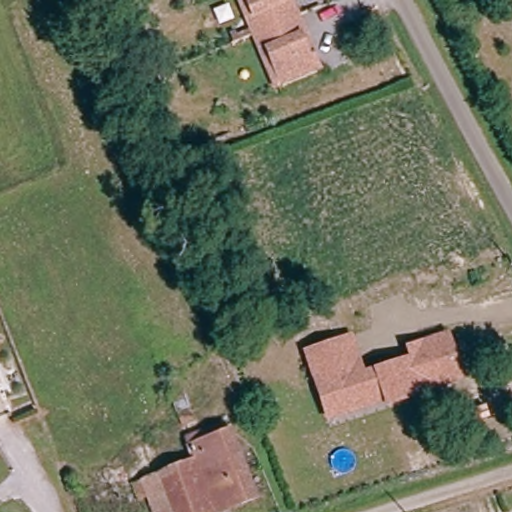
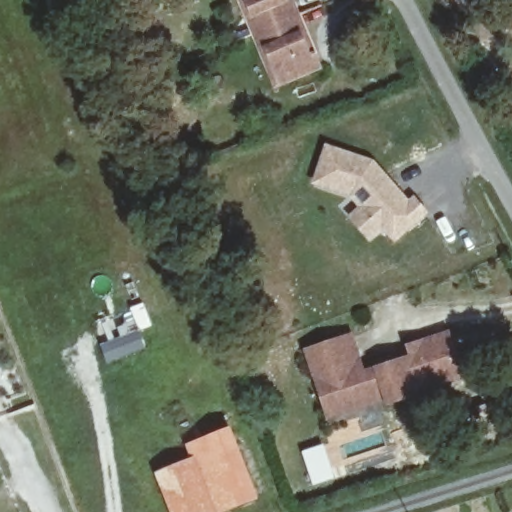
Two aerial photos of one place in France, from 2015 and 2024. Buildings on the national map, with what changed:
unchanged [(127,0),(133,0),(128,2),(127,0)]
unchanged [(266,50),(261,53),(248,19),(251,15),(245,0),(285,0),(285,1),(287,0),(291,0),(306,35),(301,36),(311,75),(280,87),(266,50)]
unchanged [(177,84),(163,89),(153,64),(166,58),(177,84)]
new [(355,191),(319,179),(333,144),(378,161),(388,175),(392,180),(412,205),(417,200),(428,215),(396,239),(386,226),(383,229),(371,237),(353,214),(365,205),(355,191)]
new [(109,363),(101,344),(121,336),(118,328),(135,321),(130,309),(144,303),(152,325),(139,330),(146,348),(109,363)]
unchanged [(353,333),(366,368),(409,356),(405,346),(450,331),(466,377),(417,392),(420,398),(390,411),(384,402),(325,421),(305,349),(353,333)]
unchanged [(221,418),(235,464),(239,463),(251,500),(223,512),(163,512),(148,468),(186,453),(181,435),(221,418)]

